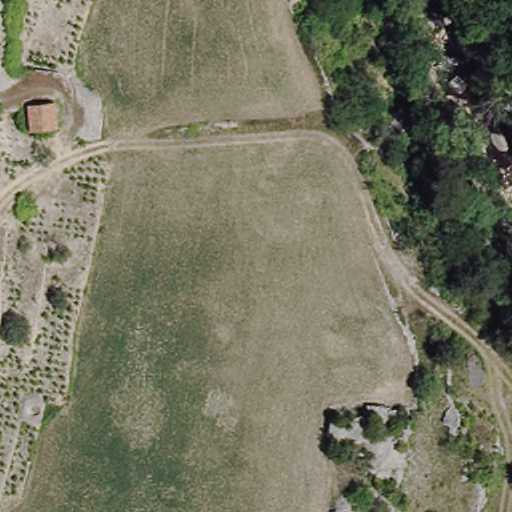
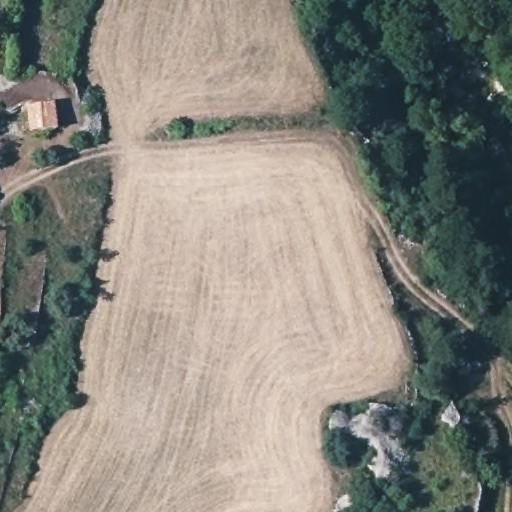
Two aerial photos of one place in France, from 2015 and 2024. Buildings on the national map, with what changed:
unchanged [(52,130),(27,132),(25,116),(23,106),(50,105),(52,130)]

